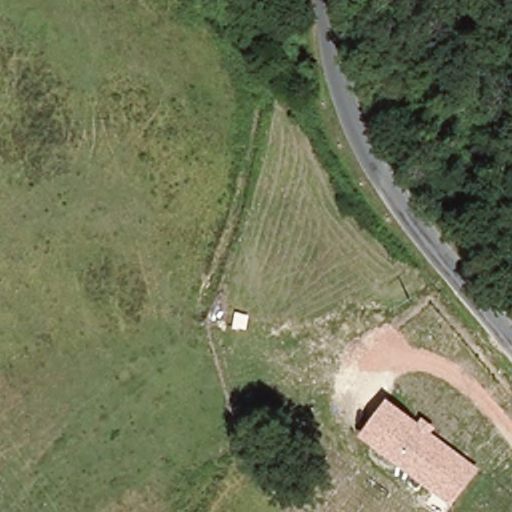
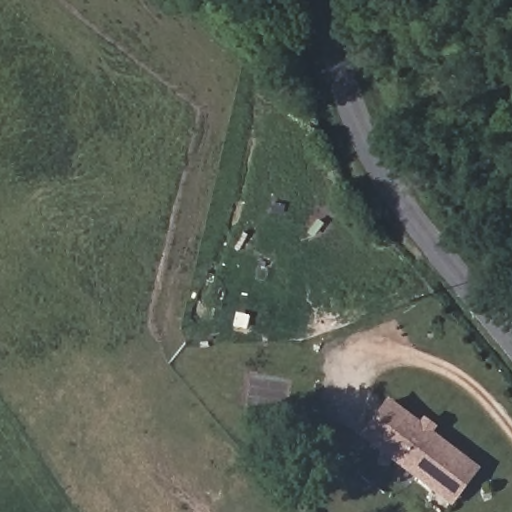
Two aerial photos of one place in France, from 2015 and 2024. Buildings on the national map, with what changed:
unchanged [(417,423),(421,418),(436,429),(433,435),(480,469),(452,507),(359,437),(387,400),(417,423)]

